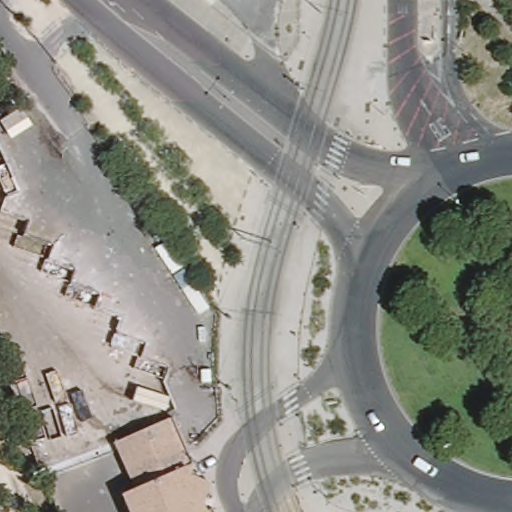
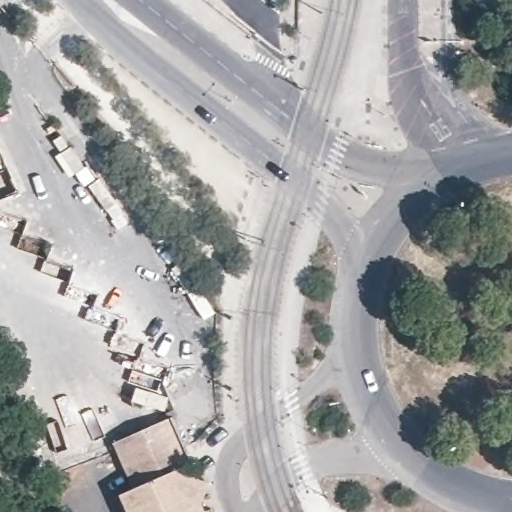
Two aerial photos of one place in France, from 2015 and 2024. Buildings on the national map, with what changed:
unchanged [(125,501),(122,491),(131,487),(136,486),(120,448),(117,441),(116,440),(174,417),(178,429),(179,429),(192,465),(177,470),(182,481),(199,488),(192,509),(194,512),(129,512),(125,501)]
unchanged [(208,509),(209,512),(201,512),(208,509)]

